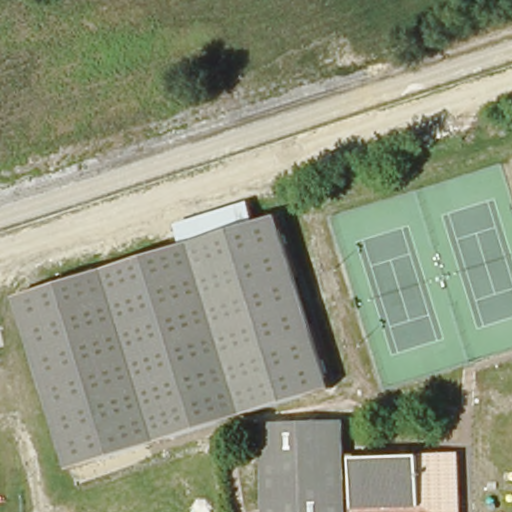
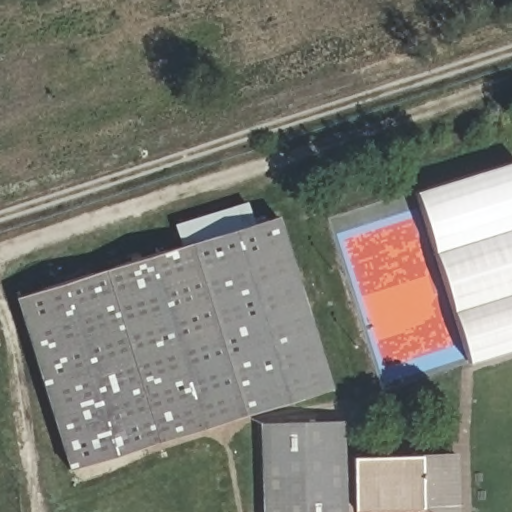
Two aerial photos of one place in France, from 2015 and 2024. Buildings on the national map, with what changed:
new [(512,161),(512,350),(475,362),(421,190),(512,161)]
unchanged [(276,217),(329,386),(66,472),(15,298),(276,217)]
unchanged [(342,409),(346,445),(417,438),(418,453),(450,449),(457,512),(263,512),(254,418),(342,409)]

